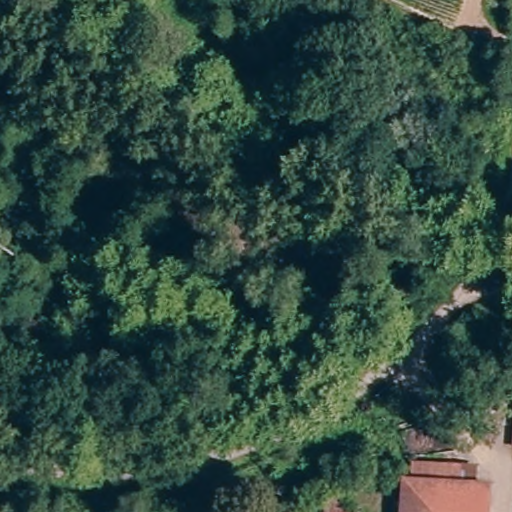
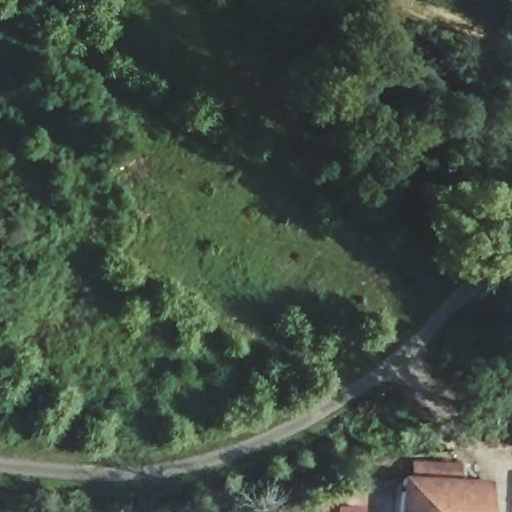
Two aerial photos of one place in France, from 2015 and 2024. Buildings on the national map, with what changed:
unchanged [(411,467),(484,476),(482,495),(407,484),(411,467)]
unchanged [(493,496),(491,512),(403,512),(407,484),(482,495),(493,496)]

